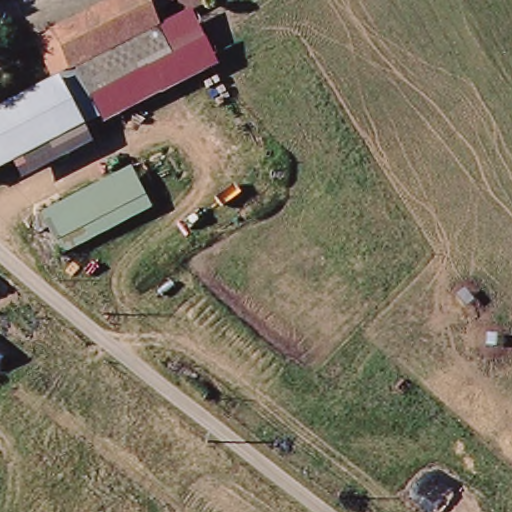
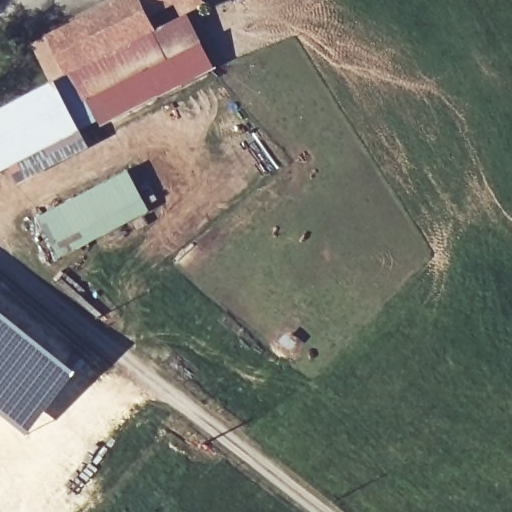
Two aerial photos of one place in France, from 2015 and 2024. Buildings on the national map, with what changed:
unchanged [(126,0),(205,0),(207,6),(166,29),(64,80),(45,40),(126,0)]
unchanged [(66,84),(64,80),(166,29),(187,69),(85,120),(66,84)]
unchanged [(85,120),(91,132),(0,175),(0,115),(66,84),(85,120)]
unchanged [(155,209),(67,252),(47,210),(135,169),(155,209)]
new [(80,372),(29,434),(0,412),(0,307),(80,372)]

